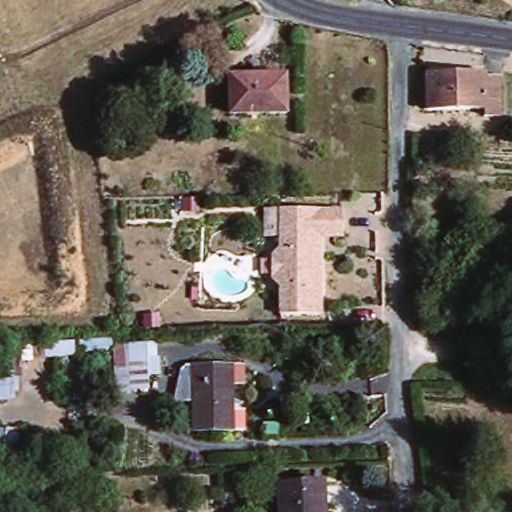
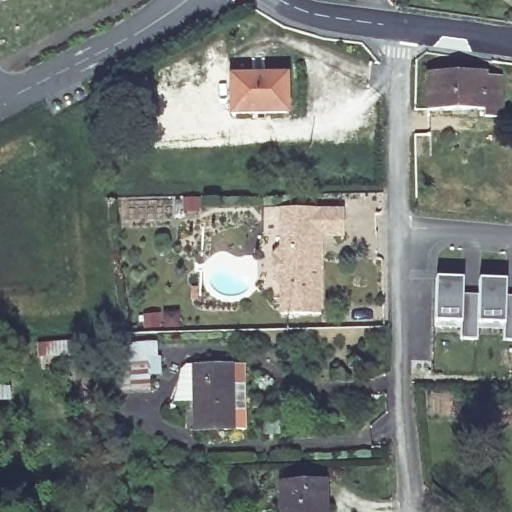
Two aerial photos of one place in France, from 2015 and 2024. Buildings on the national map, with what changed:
unchanged [(498,70),(512,70),(512,111),(498,111),(498,102),(440,102),(439,66),(497,65),(498,70)]
unchanged [(298,70),(298,109),(243,110),(243,71),(298,70)]
unchanged [(324,259),(326,318),(286,320),(285,292),(276,285),(275,261),(283,253),(281,216),(328,214),(344,213),(345,239),(328,239),(323,240),(324,259)]
new [(461,292),(478,292),(478,280),(504,280),(504,294),(512,294),(512,340),(503,340),(502,322),(479,323),(477,339),(458,339),(459,323),(435,322),(435,279),(462,279),(461,292)]
unchanged [(163,376),(161,391),(130,389),(127,353),(37,359),(36,342),(166,328),(173,374),(163,376)]
unchanged [(30,365),(30,393),(21,393),(21,400),(0,401),(0,365),(30,365)]
unchanged [(241,366),(241,428),(204,428),(204,366),(241,366)]
unchanged [(336,512),(292,512),(290,484),(336,481),(336,512)]

